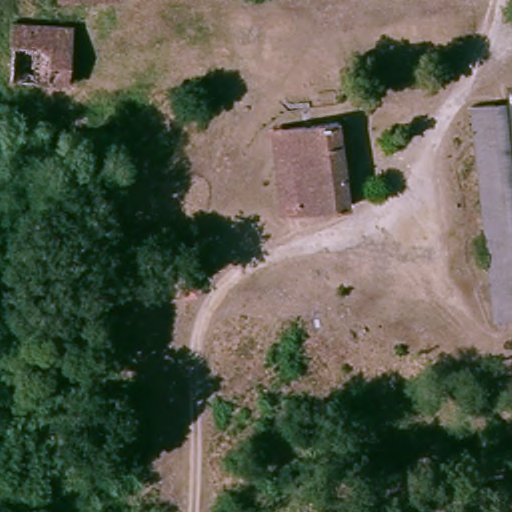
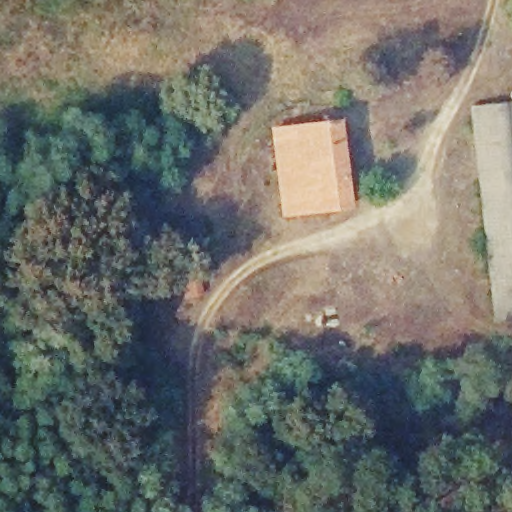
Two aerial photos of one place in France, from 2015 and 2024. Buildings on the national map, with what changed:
demolished [(12,30),(72,23),(77,74),(18,81),(12,30)]
unchanged [(498,317),(472,113),(512,108),(512,316),(498,317)]
unchanged [(279,129),(331,122),(342,207),(289,214),(279,129)]
unchanged [(91,209),(95,209),(95,206),(111,204),(114,225),(93,227),(91,209)]
unchanged [(131,222),(153,216),(158,237),(137,243),(131,222)]

